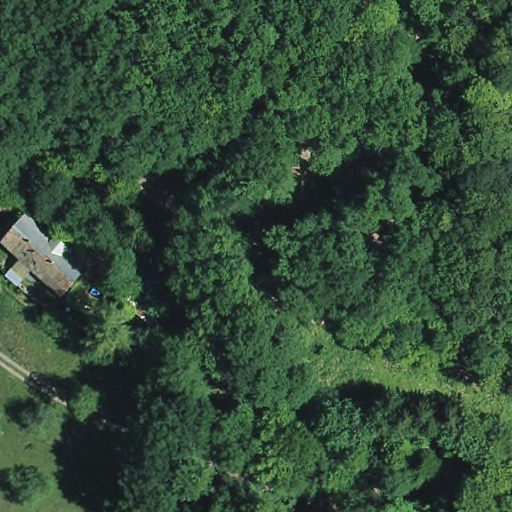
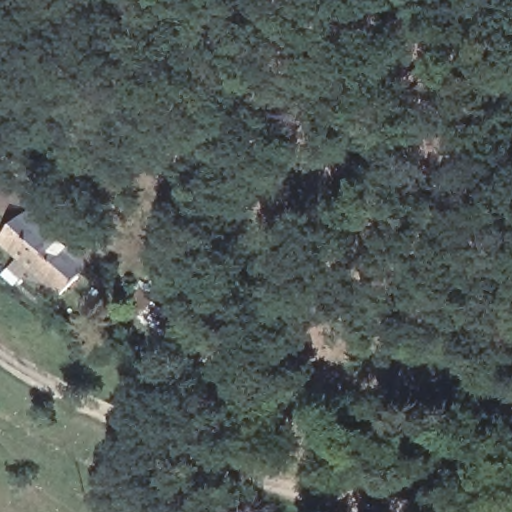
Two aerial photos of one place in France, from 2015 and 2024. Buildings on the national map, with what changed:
unchanged [(0,249),(26,221),(64,254),(39,283),(0,249)]
unchanged [(61,302),(39,283),(64,254),(86,274),(61,302)]

